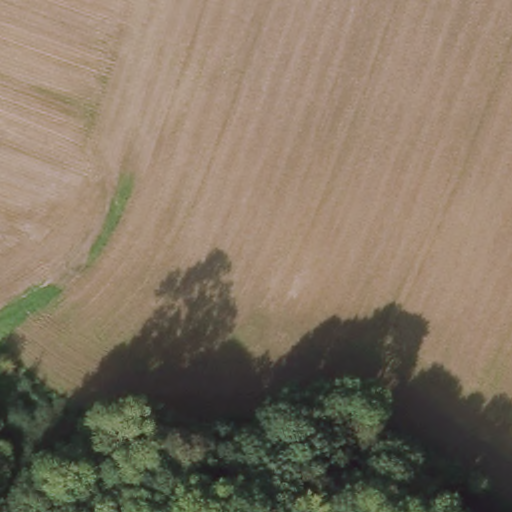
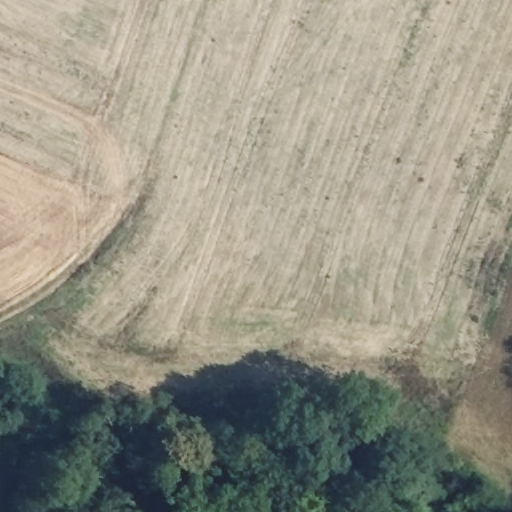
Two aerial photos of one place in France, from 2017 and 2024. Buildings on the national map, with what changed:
unchanged [(2,359),(21,377),(37,362),(50,380),(0,426),(0,361),(2,359)]

